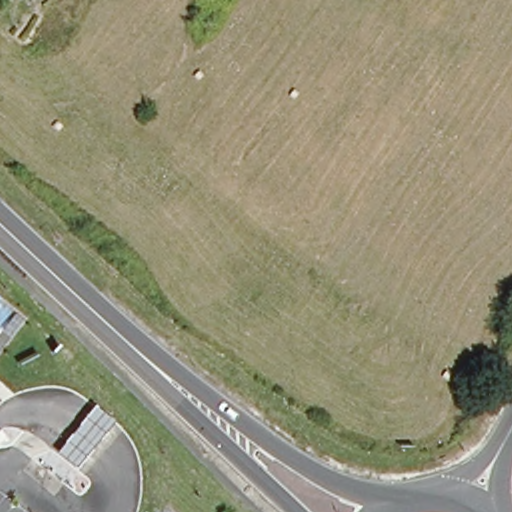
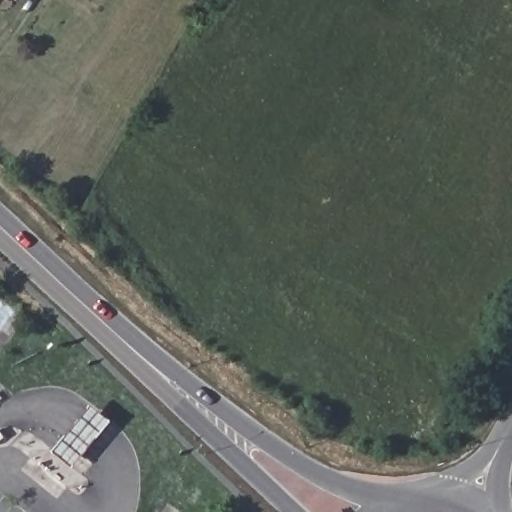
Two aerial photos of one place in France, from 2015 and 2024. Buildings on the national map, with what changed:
unchanged [(69,478),(55,461),(88,406),(115,425),(69,478)]

